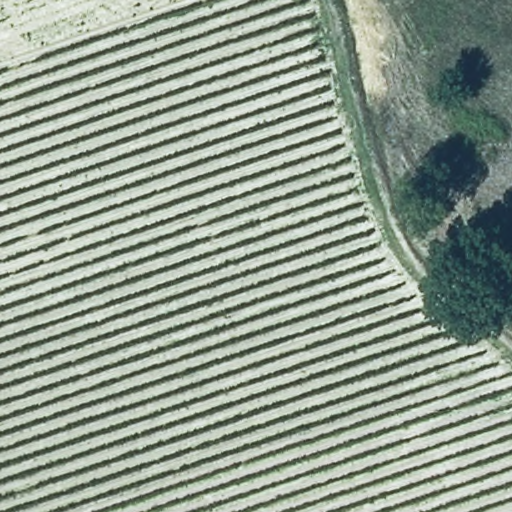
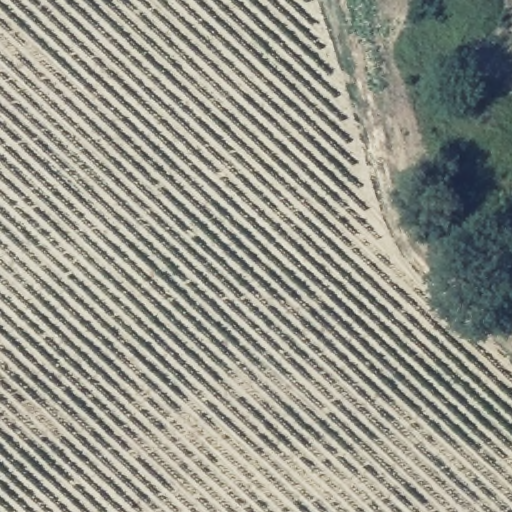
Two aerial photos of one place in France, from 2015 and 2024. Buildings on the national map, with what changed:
[]

